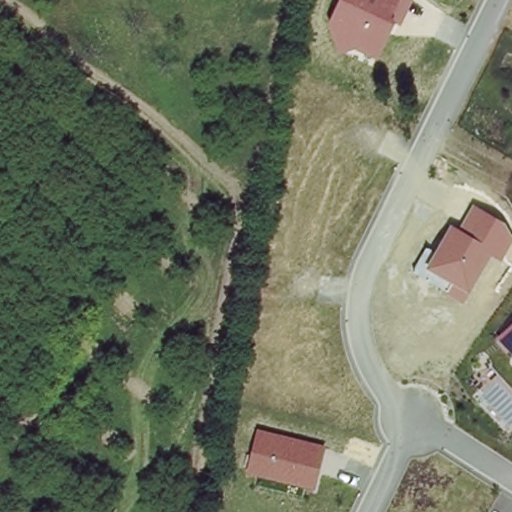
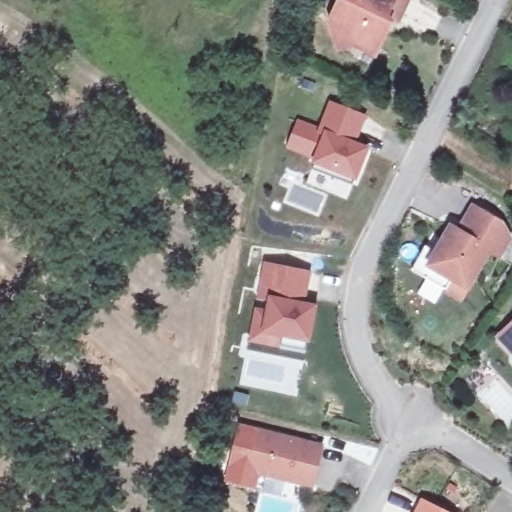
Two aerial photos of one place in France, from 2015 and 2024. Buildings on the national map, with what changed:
unchanged [(338,0),(413,0),(404,24),(392,20),(378,58),(359,48),(339,54),(326,26),(338,0)]
new [(320,127),(329,102),(367,116),(356,142),(371,148),(357,183),(312,164),(314,157),(286,149),(298,120),(320,127)]
unchanged [(426,247),(432,252),(448,225),(459,227),(472,205),(506,221),(512,236),(512,238),(501,259),(490,254),(464,304),(413,275),(426,247)]
new [(306,304),(314,305),(306,349),(283,345),(285,335),(264,331),(269,301),(258,299),(261,261),(309,270),(306,304)]
unchanged [(512,321),(512,358),(494,338),(512,321)]
unchanged [(324,446),(316,487),(246,472),(259,431),(324,446)]
new [(465,512),(418,512),(426,476),(465,512)]

